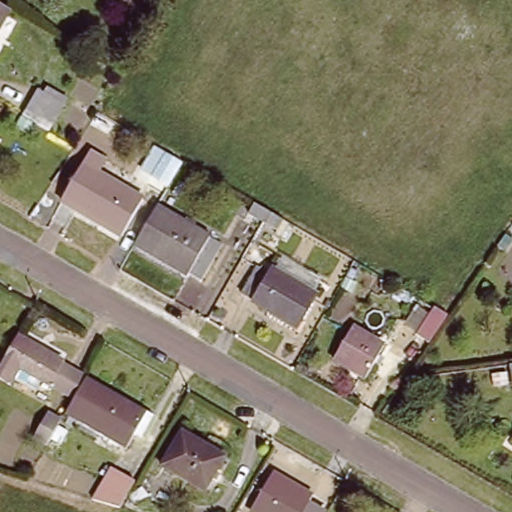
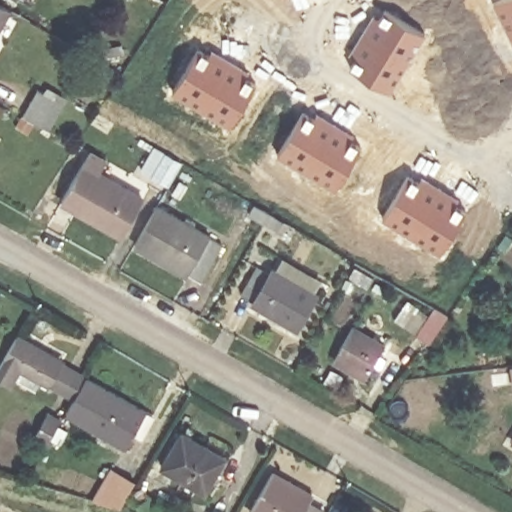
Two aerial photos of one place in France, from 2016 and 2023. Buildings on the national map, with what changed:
new [(512,0),(512,40),(493,3),(500,0),(512,0)]
unchanged [(0,9),(8,14),(0,28),(0,9)]
new [(360,52),(354,48),(369,23),(375,27),(385,10),(425,34),(390,92),(350,68),(360,52)]
new [(198,48),(215,58),(217,53),(242,68),(239,73),(255,84),(230,126),(172,91),(198,48)]
unchanged [(43,86),(68,104),(52,130),(25,112),(43,86)]
new [(302,112),(320,122),(322,117),(347,132),(344,137),(360,147),(335,189),(277,155),(302,112)]
unchanged [(66,203),(90,167),(138,197),(116,235),(66,203)]
new [(408,176),(424,186),(427,181),(452,196),(449,201),(465,210),(440,253),(382,218),(408,176)]
unchanged [(240,213),(247,200),(265,210),(281,219),(275,234),(258,223),(240,213)]
unchanged [(145,245),(166,208),(217,238),(195,274),(145,245)]
unchanged [(318,291),(303,317),(275,301),(270,309),(245,294),(260,268),(267,272),(272,263),(318,291)]
unchanged [(432,307),(446,315),(430,341),(414,335),(432,307)]
unchanged [(339,357),(355,330),(385,347),(367,373),(339,357)]
unchanged [(91,373),(152,410),(127,449),(69,417),(75,401),(52,387),(24,373),(15,386),(0,376),(0,371),(24,334),(91,373)]
unchanged [(512,375),(512,392),(503,392),(502,376),(512,375)]
new [(50,412),(62,417),(47,443),(35,437),(50,412)]
demolished [(50,427),(62,433),(47,459),(35,452),(50,427)]
unchanged [(165,460),(184,430),(226,455),(208,486),(165,460)]
unchanged [(134,483),(120,506),(96,499),(116,471),(134,483)]
unchanged [(253,506),(275,473),(313,496),(309,502),(322,512),(262,512),(253,506)]

